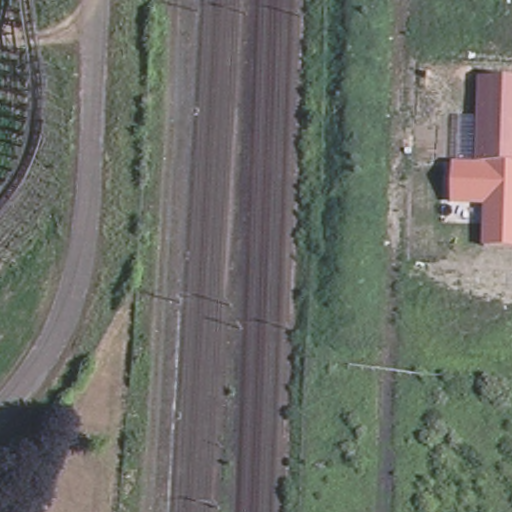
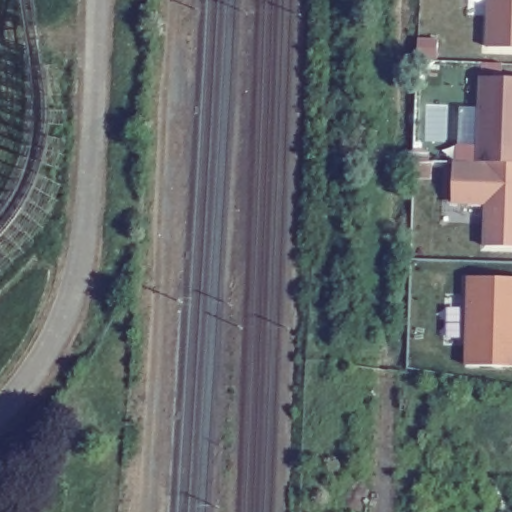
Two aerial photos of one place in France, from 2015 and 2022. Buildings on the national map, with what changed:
new [(512,0),(512,49),(486,47),(488,0),(512,0)]
unchanged [(452,205),(454,162),(477,162),(480,76),(512,77),(512,247),(483,247),(485,206),(452,205)]
new [(512,288),(512,376),(458,375),(461,286),(512,288)]

